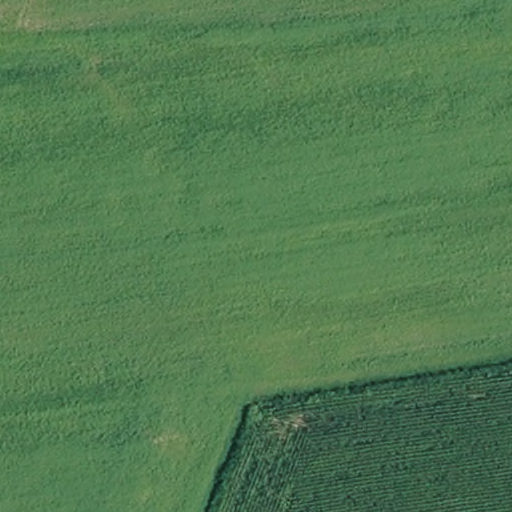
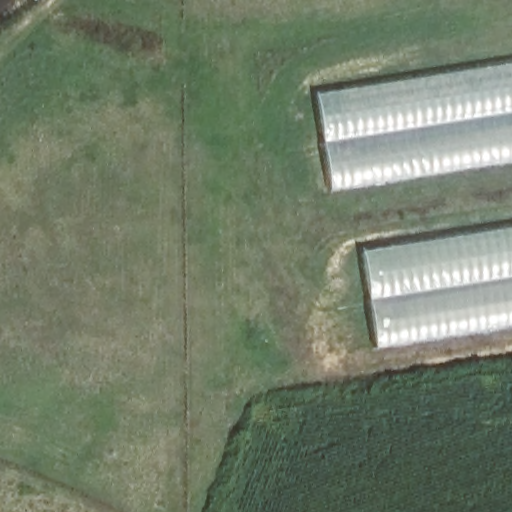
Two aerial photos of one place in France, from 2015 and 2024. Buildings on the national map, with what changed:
new [(512,62),(512,161),(325,192),(311,94),(512,62)]
new [(373,349),(357,251),(512,227),(512,327),(373,349)]

